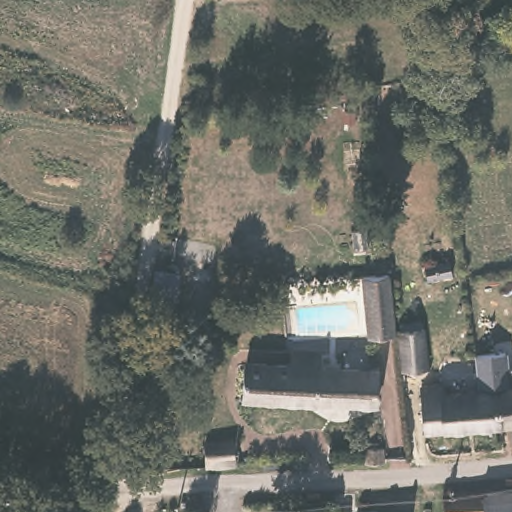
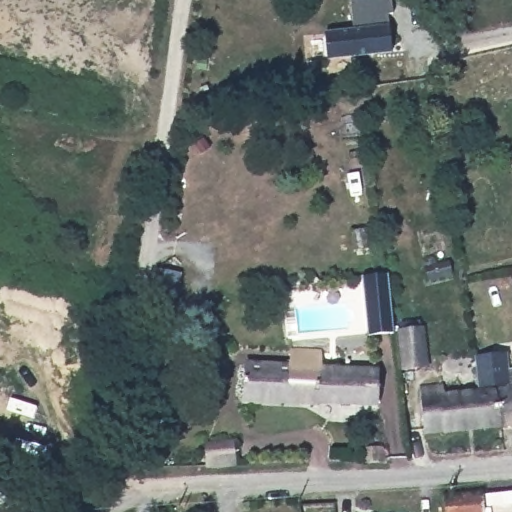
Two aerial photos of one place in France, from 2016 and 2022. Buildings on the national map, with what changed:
new [(350,0),(390,0),(391,14),(386,14),(390,52),(325,57),(322,31),(351,29),(350,0)]
unchanged [(457,53),(445,54),(442,36),(455,35),(457,53)]
unchanged [(456,270),(431,274),(430,259),(454,255),(456,270)]
unchanged [(154,270),(184,277),(177,318),(148,312),(154,270)]
unchanged [(396,333),(370,336),(362,275),(385,272),(390,271),(396,333)]
unchanged [(430,364),(405,369),(399,329),(423,325),(430,364)]
unchanged [(506,415),(501,384),(501,379),(485,381),(481,351),(510,346),(512,366),(512,419),(506,421),(506,415)]
unchanged [(324,352),(324,368),(383,369),(382,403),(323,399),(321,403),(247,399),(249,364),(294,364),(295,349),(324,352)]
unchanged [(447,427),(447,423),(430,425),(423,383),(443,379),(445,390),(486,386),(501,384),(506,415),(506,421),(447,427)]
unchanged [(236,463),(206,464),(204,443),(234,442),(236,463)]
unchanged [(382,447),(383,459),(382,462),(367,462),(365,458),(366,446),(382,447)]
unchanged [(447,489),(512,486),(512,512),(448,512),(447,489)]

